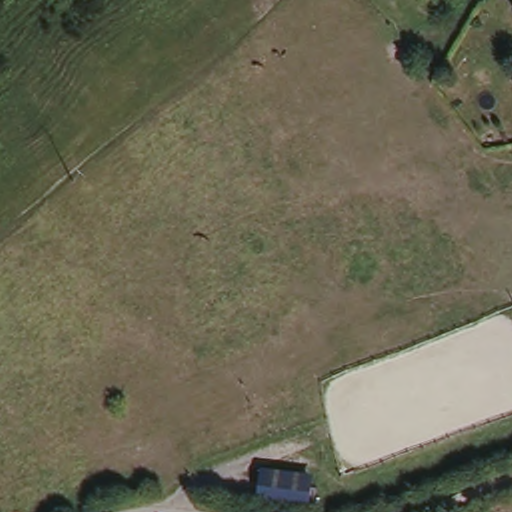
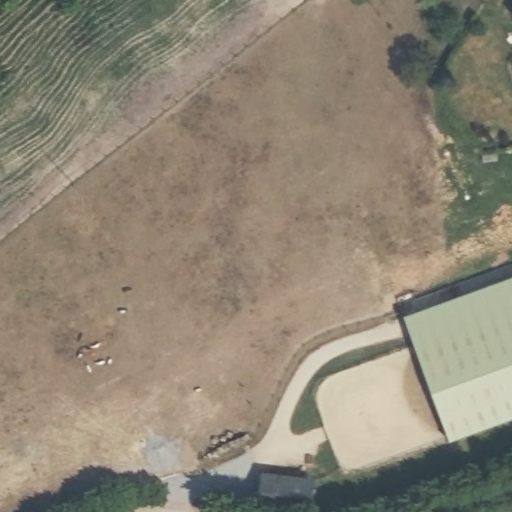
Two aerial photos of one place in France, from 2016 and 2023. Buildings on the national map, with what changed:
new [(407,320),(512,281),(512,312),(417,346),(407,320)]
new [(512,423),(452,445),(417,346),(512,312),(512,423)]
unchanged [(259,471),(313,478),(310,507),(255,499),(259,471)]

